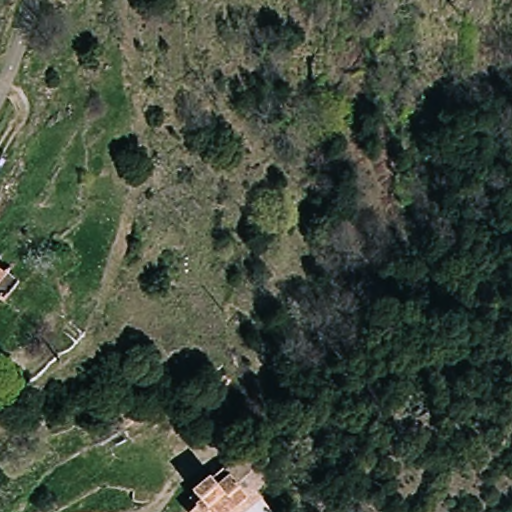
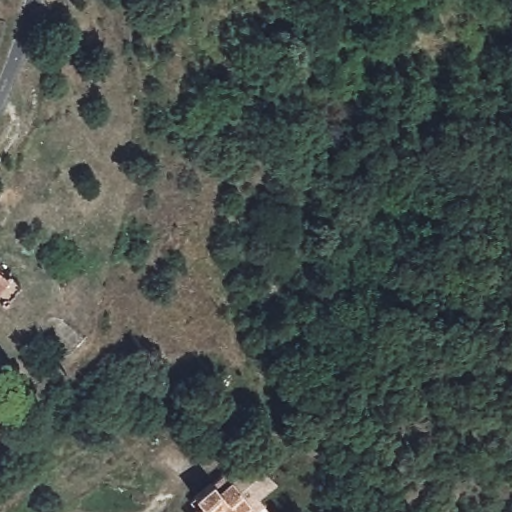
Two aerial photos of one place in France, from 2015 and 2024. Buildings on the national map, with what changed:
unchanged [(7,252),(19,265),(8,277),(0,268),(0,258),(7,252)]
unchanged [(8,277),(19,288),(0,307),(0,285),(8,277)]
unchanged [(259,448),(276,485),(258,498),(267,512),(197,512),(208,507),(196,493),(212,479),(259,448)]

